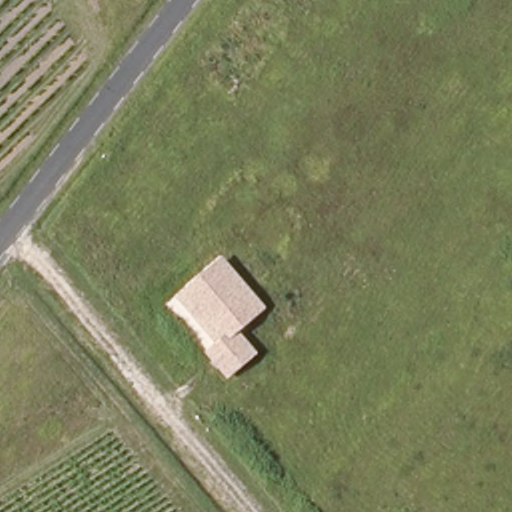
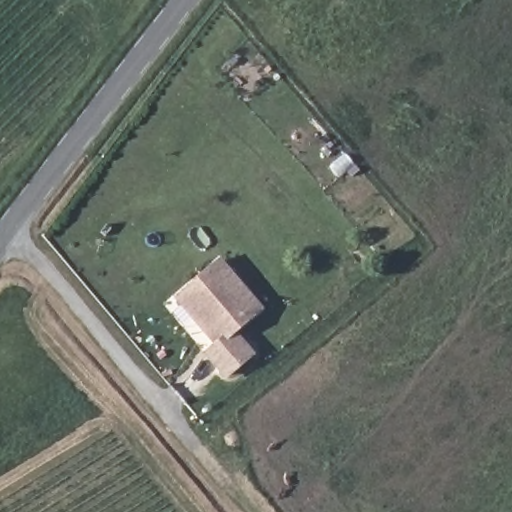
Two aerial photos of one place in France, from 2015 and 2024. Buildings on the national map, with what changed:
unchanged [(201,354),(216,341),(173,298),(219,258),(263,310),(240,330),(255,357),(225,380),(201,354)]

